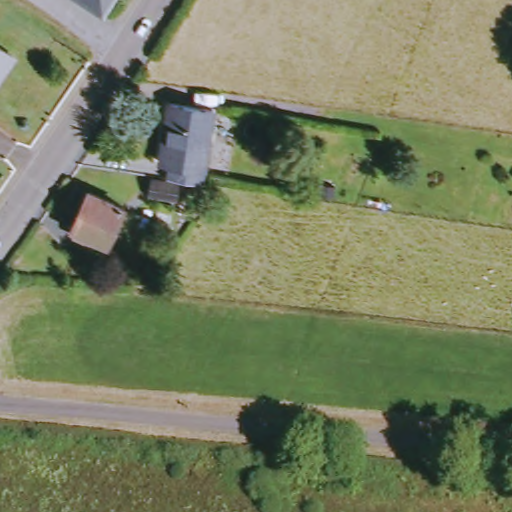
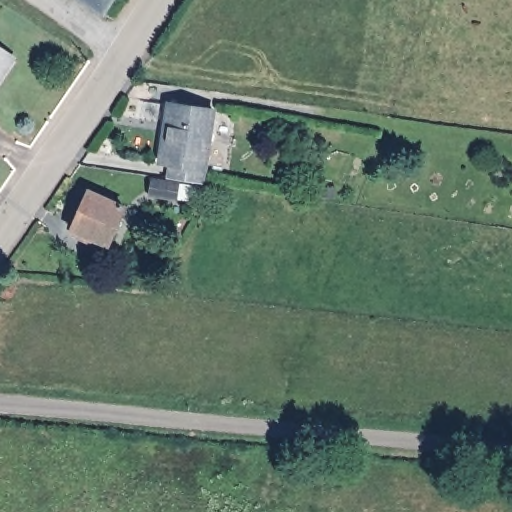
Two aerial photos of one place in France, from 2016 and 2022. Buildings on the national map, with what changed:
unchanged [(89,0),(114,0),(107,12),(89,0)]
unchanged [(0,87),(0,47),(18,60),(0,87)]
unchanged [(153,164),(146,162),(161,105),(202,116),(183,185),(149,179),(153,164)]
unchanged [(144,181),(172,185),(169,202),(142,199),(144,181)]
unchanged [(111,249),(75,232),(93,195),(128,212),(111,249)]

